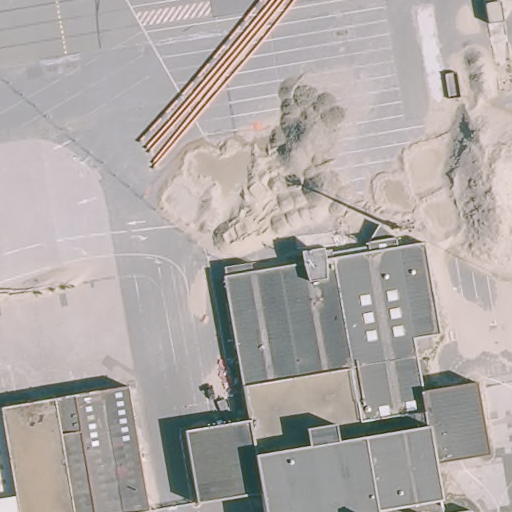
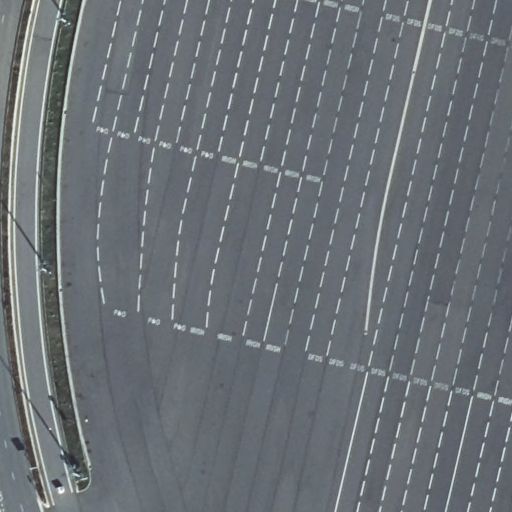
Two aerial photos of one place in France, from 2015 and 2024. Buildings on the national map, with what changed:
demolished [(195,505),(183,427),(247,415),(225,275),(420,241),(437,336),(407,342),(415,391),(470,380),(483,457),(431,464),(439,512),(261,512),(258,496),(195,505)]
demolished [(160,507),(134,512),(104,512),(83,392),(140,383),(160,507)]
demolished [(104,512),(25,512),(7,406),(83,392),(104,512)]
demolished [(25,512),(0,512),(0,407),(7,406),(25,512)]

